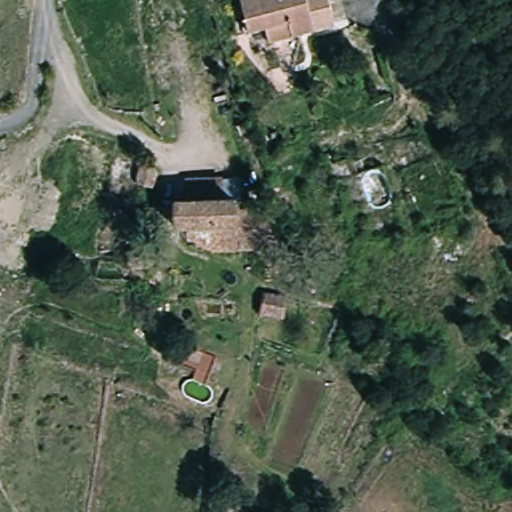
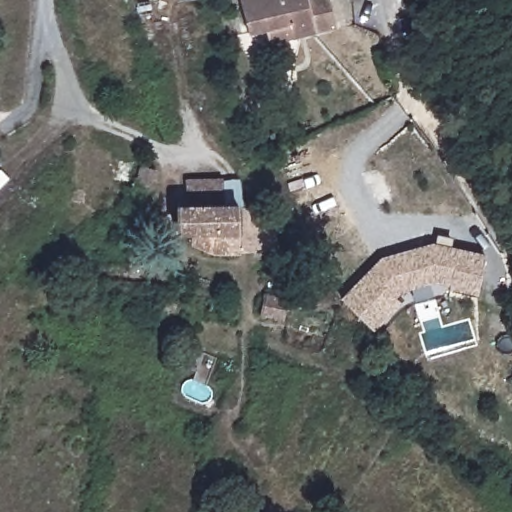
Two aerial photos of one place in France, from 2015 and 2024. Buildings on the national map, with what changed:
unchanged [(236,34),(230,0),(289,0),(290,0),(293,0),(310,0),(318,36),(279,43),(251,47),(247,32),(236,34)]
unchanged [(136,185),(142,164),(160,169),(156,192),(136,185)]
unchanged [(183,176),(220,187),(222,208),(176,212),(183,176)]
unchanged [(187,235),(171,236),(176,212),(222,208),(251,206),(256,218),(273,218),(280,255),(203,252),(183,245),(187,235)]
new [(385,261),(435,244),(488,252),(482,288),(455,284),(455,281),(438,278),(405,291),(398,297),(405,302),(378,332),(347,304),(385,261)]
unchanged [(258,321),(260,299),(286,303),(285,324),(258,321)]

